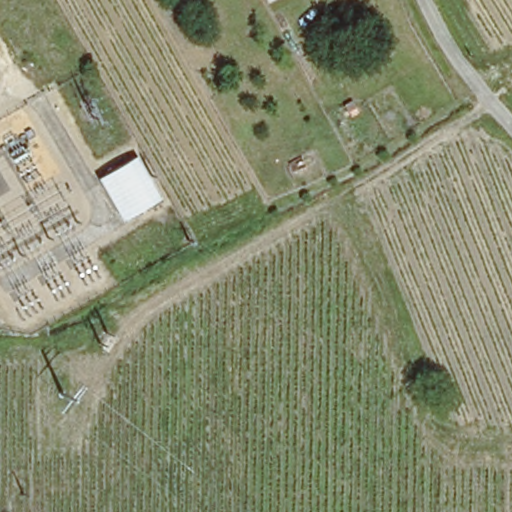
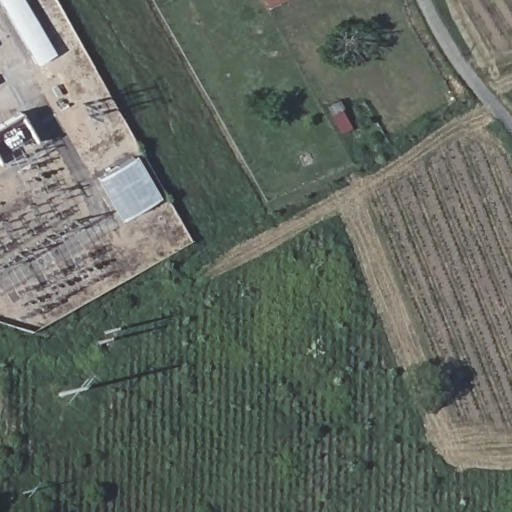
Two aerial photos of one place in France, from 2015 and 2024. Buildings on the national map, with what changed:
new [(24,0),(56,55),(38,65),(0,0),(24,0)]
demolished [(266,0),(262,3),(261,0),(266,0)]
unchanged [(160,199),(123,222),(95,180),(136,157),(160,199)]

